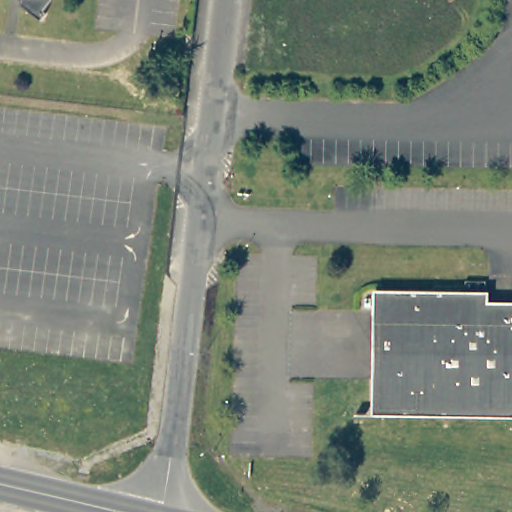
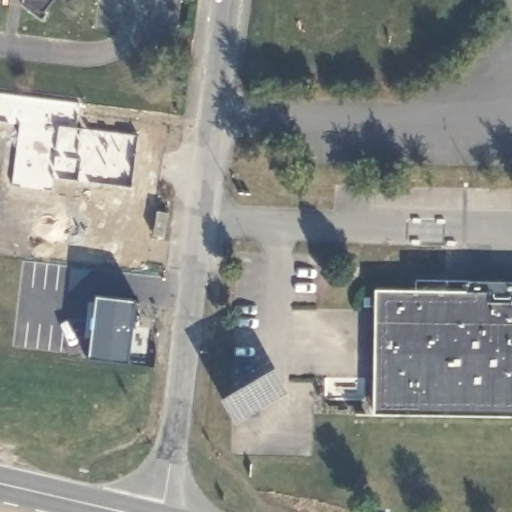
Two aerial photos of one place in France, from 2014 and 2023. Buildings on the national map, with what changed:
unchanged [(50,15),(45,20),(23,5),(25,0),(55,0),(46,11),(50,15)]
new [(98,292),(140,298),(132,363),(89,358),(98,292)]
unchanged [(512,309),(512,416),(377,413),(377,295),(443,297),(489,298),(489,309),(512,309)]

